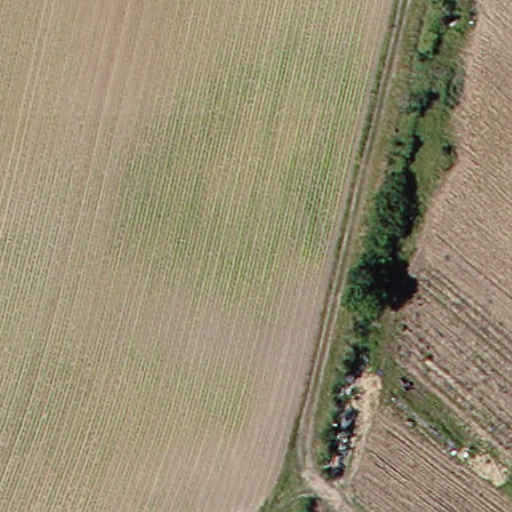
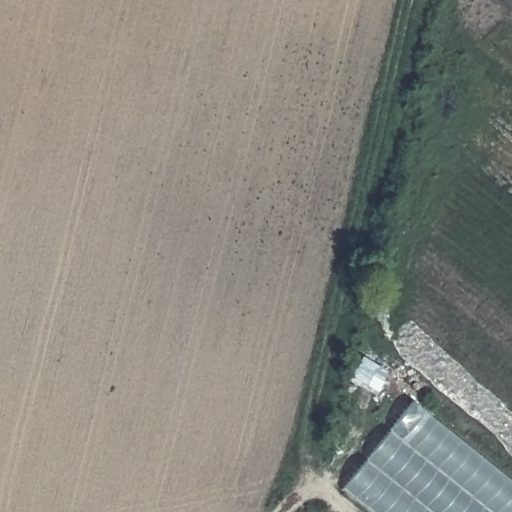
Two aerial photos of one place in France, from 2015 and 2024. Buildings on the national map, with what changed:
new [(512,512),(370,512),(339,486),(410,401),(512,485),(512,512)]

